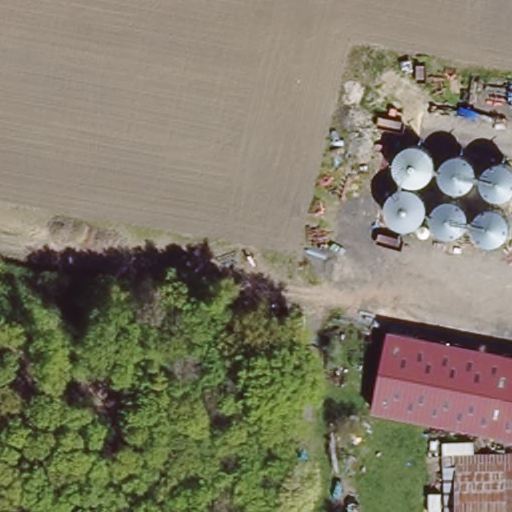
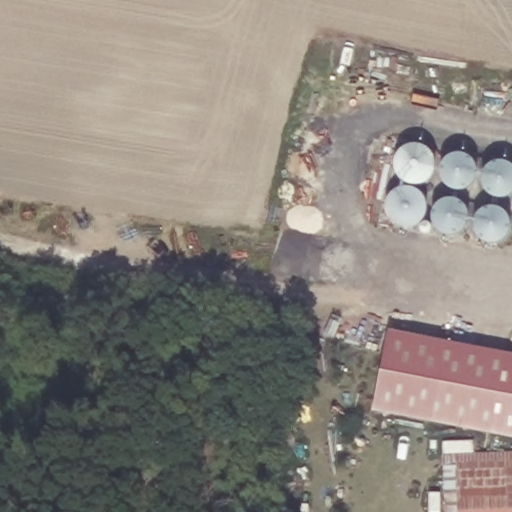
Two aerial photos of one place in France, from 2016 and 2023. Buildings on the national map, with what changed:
unchanged [(411,144),(512,165),(512,223),(509,240),(494,247),(394,229),(385,215),(398,149),(411,144)]
unchanged [(372,412),(390,331),(512,355),(512,439),(372,412)]
unchanged [(475,441),(475,453),(512,452),(512,512),(445,512),(443,442),(475,441)]

